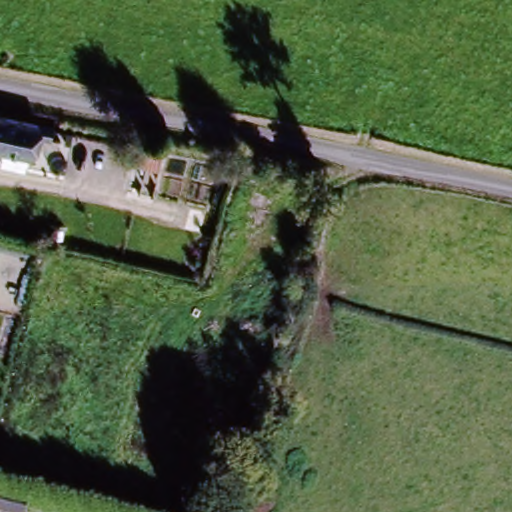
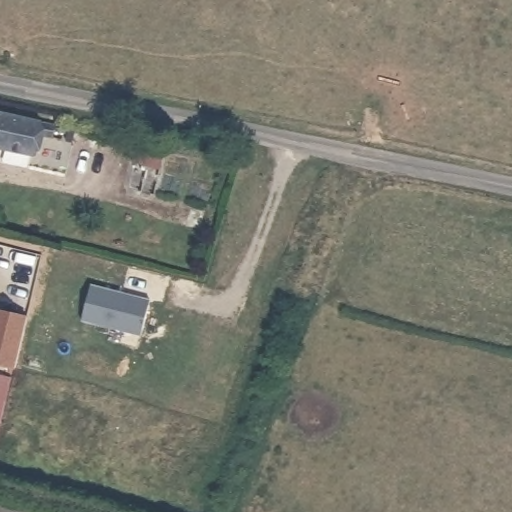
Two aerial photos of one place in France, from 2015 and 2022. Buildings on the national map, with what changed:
unchanged [(38,129),(33,154),(0,147),(0,108),(57,123),(55,133),(38,129)]
unchanged [(135,160),(138,144),(164,150),(163,166),(135,160)]
new [(151,298),(141,337),(83,322),(91,284),(151,298)]
demolished [(242,331),(261,285),(284,294),(266,340),(242,331)]
new [(26,317),(14,368),(0,364),(0,310),(26,317)]
unchanged [(24,500),(22,512),(9,512),(0,510),(0,493),(24,500)]

